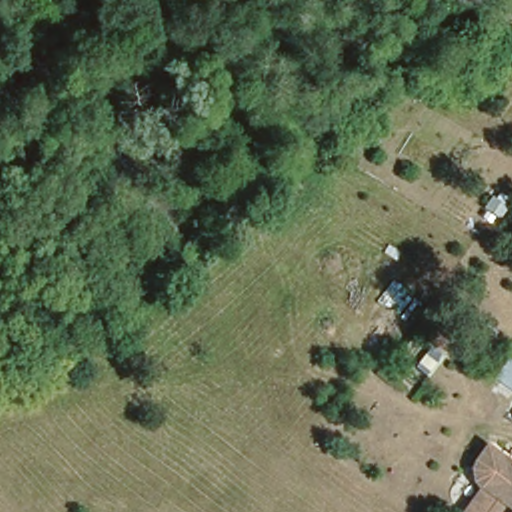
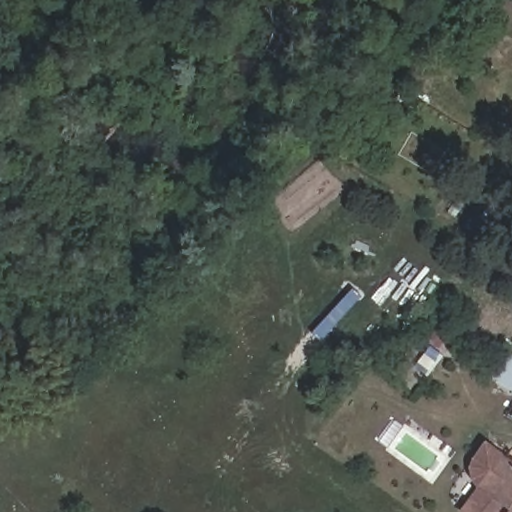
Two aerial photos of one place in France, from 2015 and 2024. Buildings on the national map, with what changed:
unchanged [(512,357),(512,387),(493,373),(504,359),(508,355),(512,357)]
unchanged [(458,507),(478,481),(462,468),(484,441),(512,462),(512,512),(504,512),(506,509),(509,506),(503,501),(499,505),(494,512),(466,512),(458,507)]

